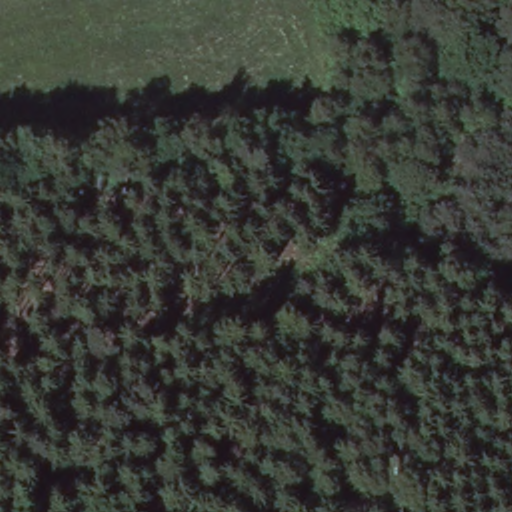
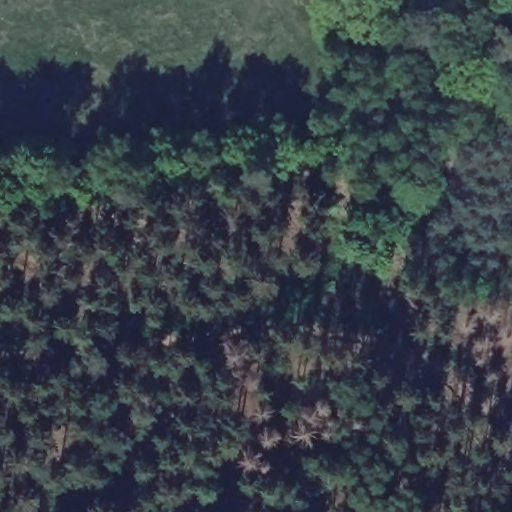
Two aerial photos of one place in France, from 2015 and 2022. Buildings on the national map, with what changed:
[]

